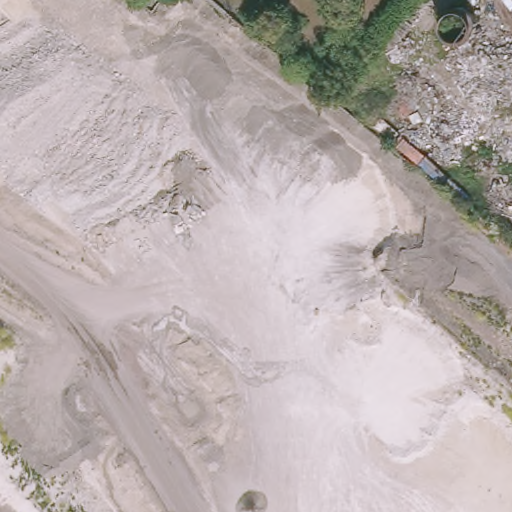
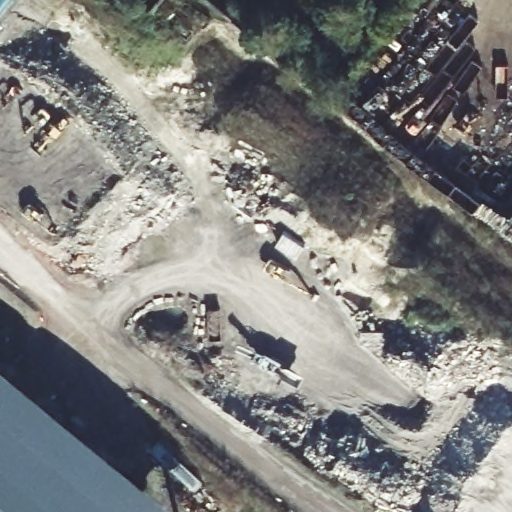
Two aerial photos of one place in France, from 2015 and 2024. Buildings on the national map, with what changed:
new [(214,512),(0,512),(0,336),(214,512)]

